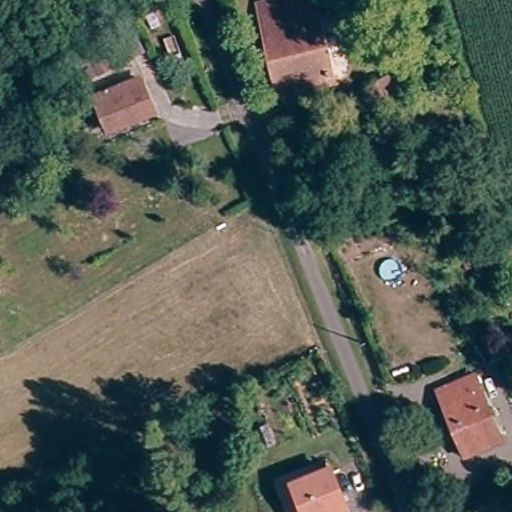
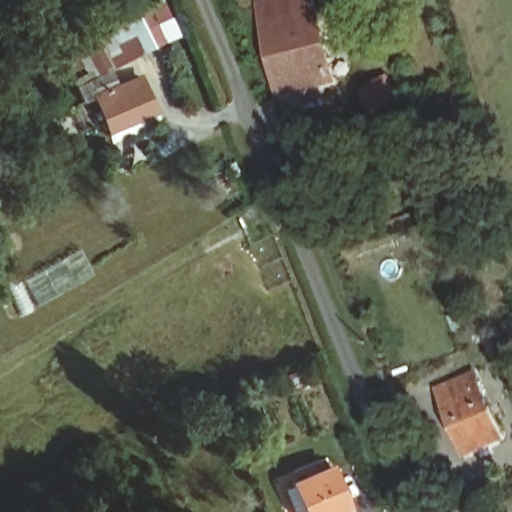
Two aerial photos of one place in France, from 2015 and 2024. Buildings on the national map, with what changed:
unchanged [(281,0),(311,0),(331,79),(275,94),(253,6),(281,0)]
unchanged [(109,127),(94,102),(136,76),(155,109),(131,123),(113,134),(109,127)]
unchanged [(389,82),(399,101),(371,113),(363,94),(389,82)]
unchanged [(471,375),(502,440),(465,458),(435,393),(471,375)]
unchanged [(326,471),(343,511),(342,512),(300,512),(289,486),(326,471)]

